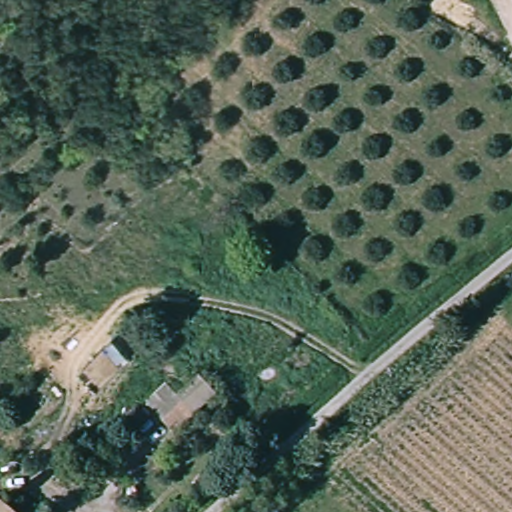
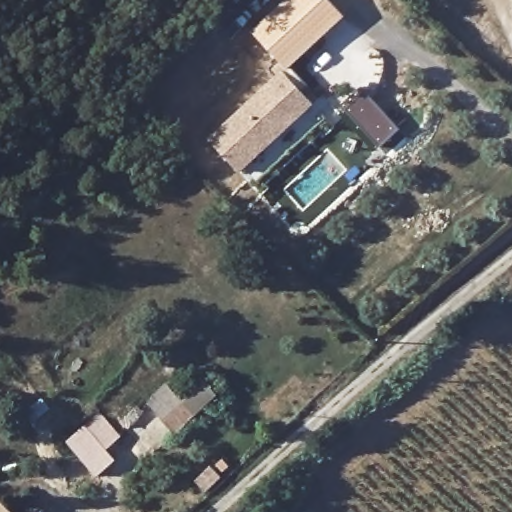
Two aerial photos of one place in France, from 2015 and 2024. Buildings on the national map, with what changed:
new [(286,0),(329,0),(345,17),(288,71),(251,32),(286,0)]
new [(283,71),(315,105),(240,173),(208,139),(283,71)]
unchanged [(148,408),(167,392),(169,390),(178,400),(201,380),(218,401),(193,423),(174,438),(148,408)]
new [(123,437),(107,450),(117,462),(97,478),(66,441),(102,411),(123,437)]
unchanged [(0,500),(11,512),(0,512),(0,500)]

